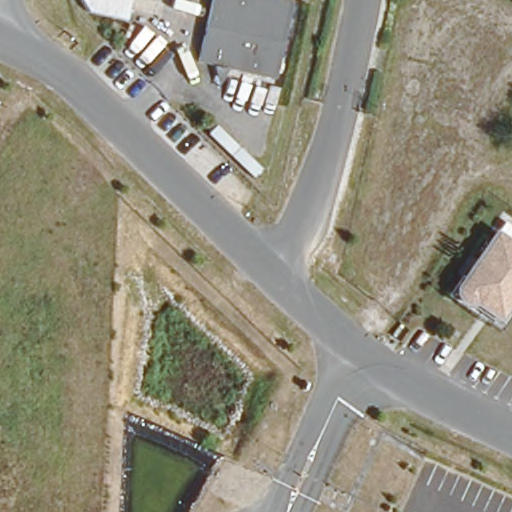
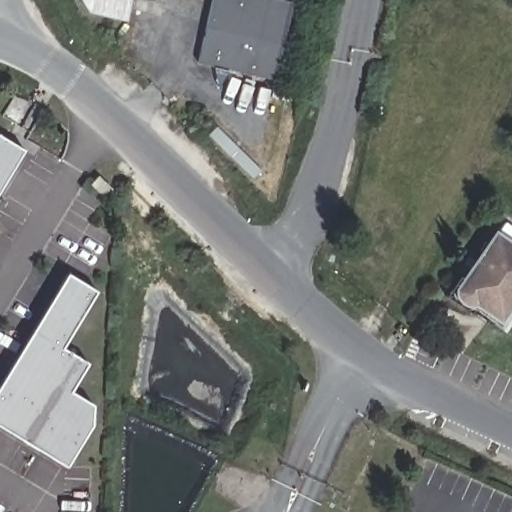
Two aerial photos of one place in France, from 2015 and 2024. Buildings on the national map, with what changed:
unchanged [(71,15),(75,0),(129,0),(124,26),(71,15)]
unchanged [(196,63),(211,0),(247,0),(287,8),(270,77),(196,63)]
new [(0,188),(0,135),(23,150),(0,188)]
unchanged [(512,248),(512,289),(493,319),(469,304),(463,310),(445,297),(450,292),(445,287),(484,230),(512,248)]
new [(66,272),(96,291),(62,347),(87,362),(70,392),(91,404),(91,424),(65,467),(0,427),(0,383),(66,272)]

